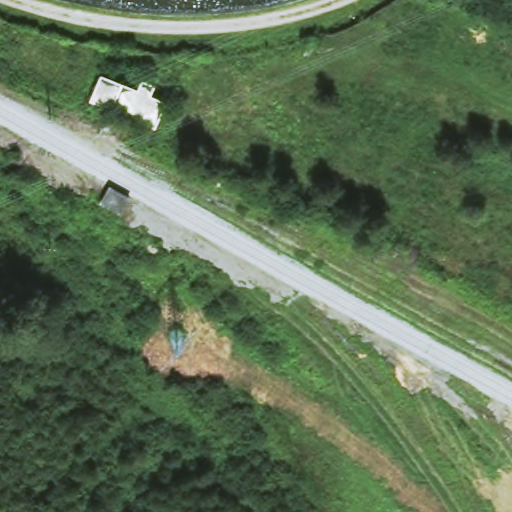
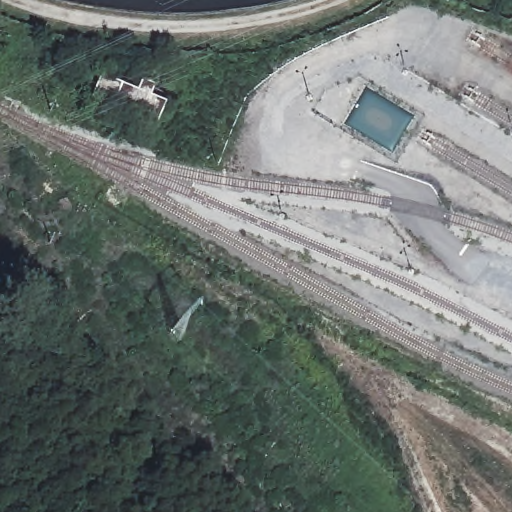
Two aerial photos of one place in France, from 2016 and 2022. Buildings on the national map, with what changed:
unchanged [(163,109),(157,124),(93,98),(102,76),(138,91),(143,80),(159,86),(154,98),(166,103),(163,109)]
unchanged [(117,192),(133,201),(122,219),(97,204),(107,187),(117,192)]

